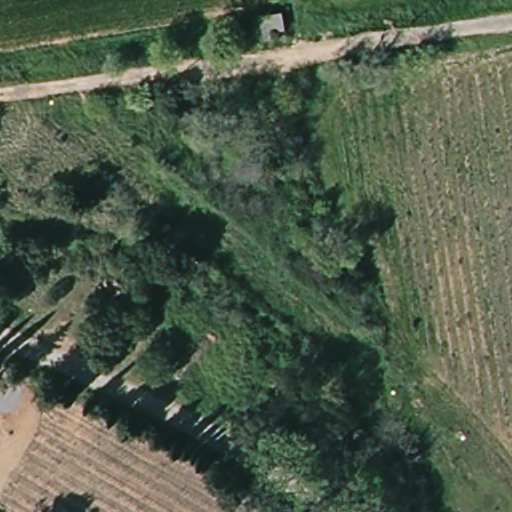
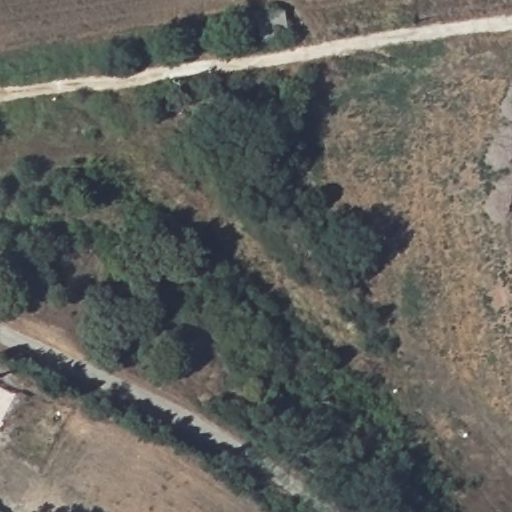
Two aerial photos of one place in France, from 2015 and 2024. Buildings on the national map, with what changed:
unchanged [(261,14),(289,10),(291,26),(278,27),(279,39),(264,40),(261,14)]

